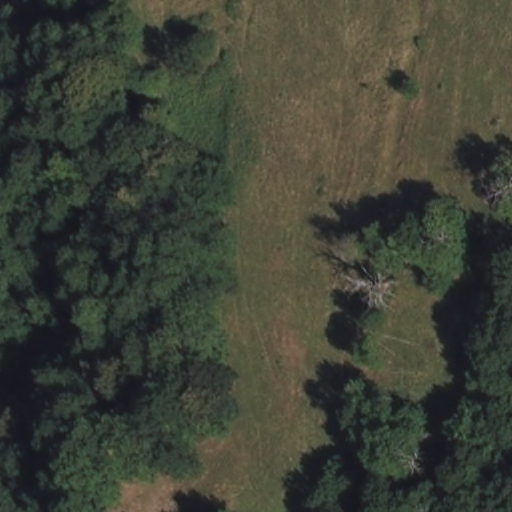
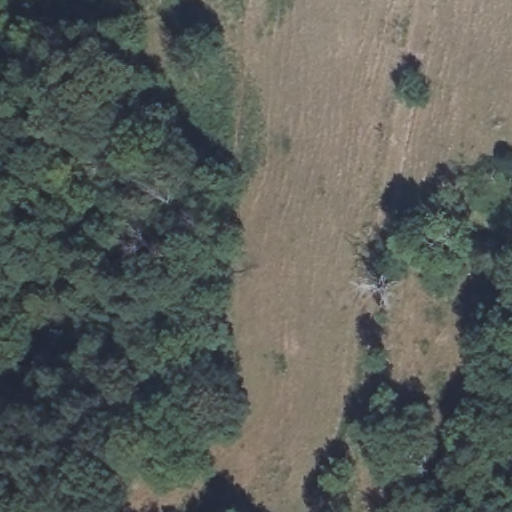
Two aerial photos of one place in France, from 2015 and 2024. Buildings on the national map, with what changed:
[]

